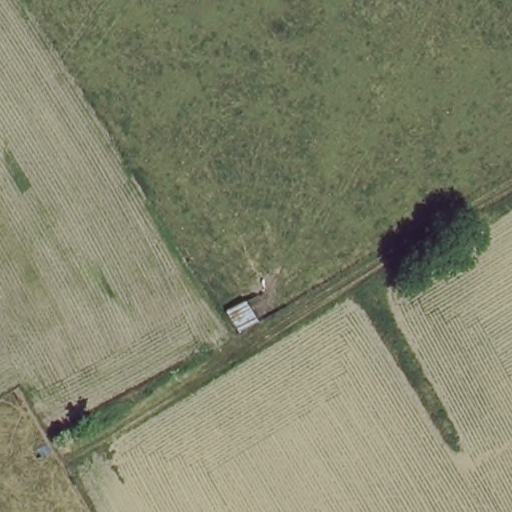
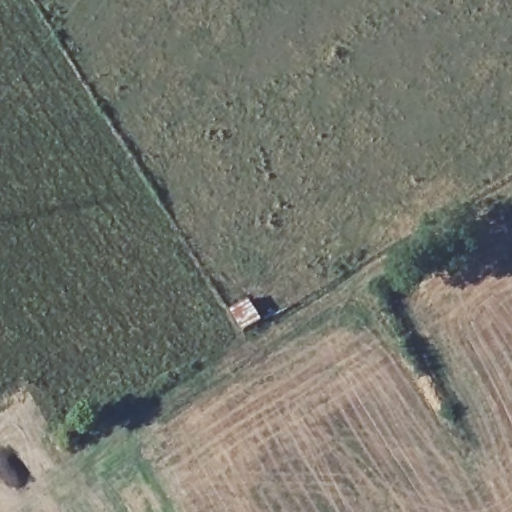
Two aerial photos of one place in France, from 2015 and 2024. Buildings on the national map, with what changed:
unchanged [(245,333),(235,315),(250,303),(263,323),(245,333)]

